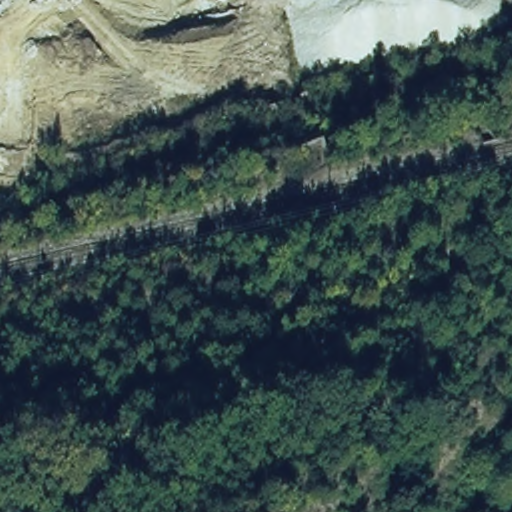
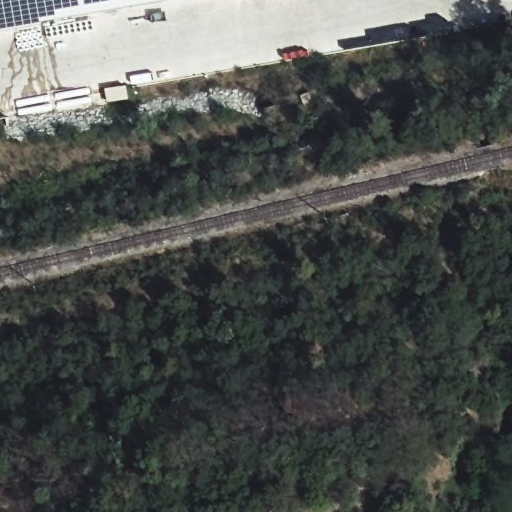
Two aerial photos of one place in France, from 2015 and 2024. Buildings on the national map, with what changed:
new [(0,31),(0,0),(176,0),(0,31)]
new [(118,114),(98,117),(97,105),(116,101),(118,114)]

